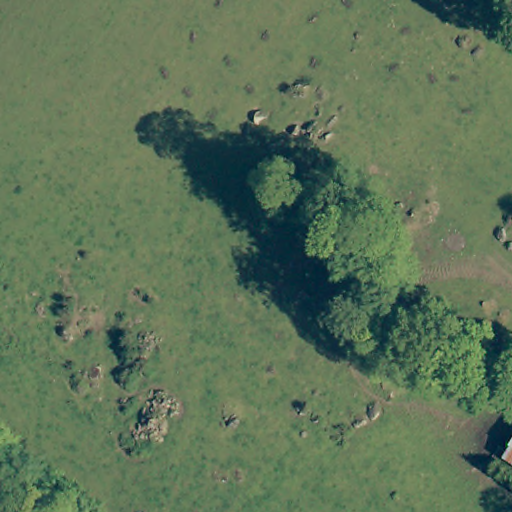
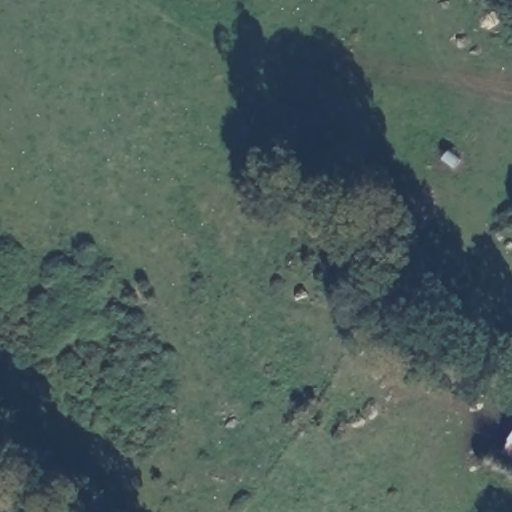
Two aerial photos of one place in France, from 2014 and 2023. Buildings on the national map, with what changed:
unchanged [(512,446),(505,442),(512,430),(512,446)]

